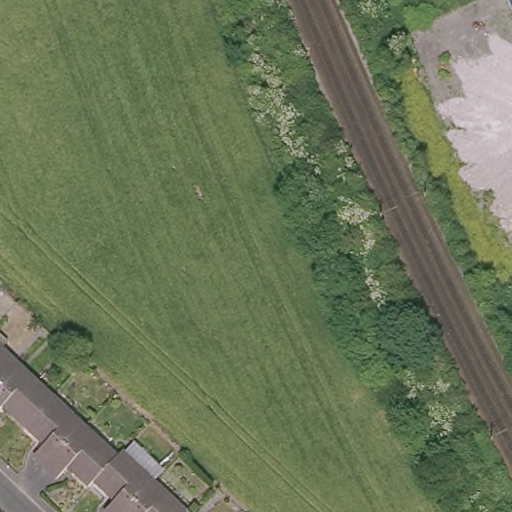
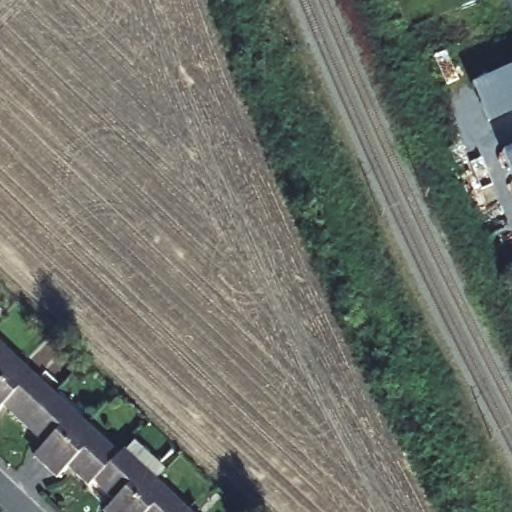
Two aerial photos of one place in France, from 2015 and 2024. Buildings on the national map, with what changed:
unchanged [(510,0),(512,0),(512,6),(510,0)]
new [(489,122),(472,86),(512,67),(512,111),(489,122)]
new [(512,150),(512,172),(504,154),(512,150)]
unchanged [(0,341),(16,356),(0,373),(0,341)]
unchanged [(0,396),(0,373),(16,356),(45,384),(18,413),(0,396)]
unchanged [(39,455),(28,445),(39,433),(18,413),(45,384),(78,415),(39,455)]
unchanged [(100,456),(88,469),(83,475),(61,454),(50,465),(39,455),(78,415),(110,445),(100,456)]
unchanged [(99,501),(110,490),(88,469),(100,456),(110,445),(116,440),(149,471),(110,511),(99,501)]
unchanged [(133,512),(111,512),(110,511),(149,471),(155,476),(183,502),(173,512),(134,512),(133,511),(133,512)]
unchanged [(193,512),(173,512),(183,502),(193,512)]

